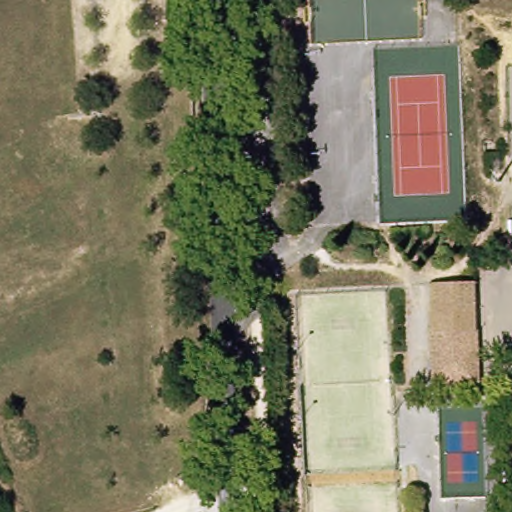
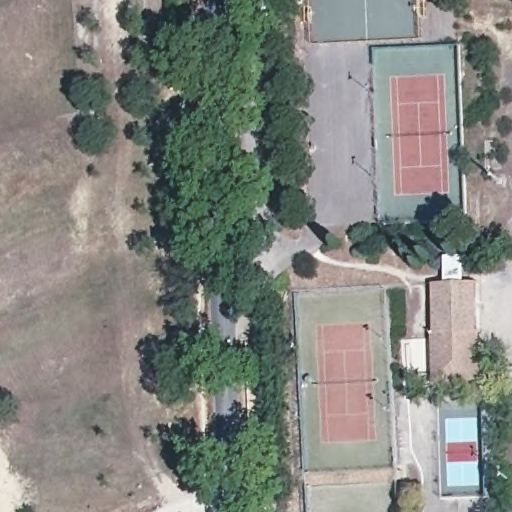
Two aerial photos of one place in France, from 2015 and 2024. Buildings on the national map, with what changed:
unchanged [(477,336),(432,336),(434,280),(477,280),(477,336)]
unchanged [(477,382),(433,379),(432,336),(477,336),(477,382)]

